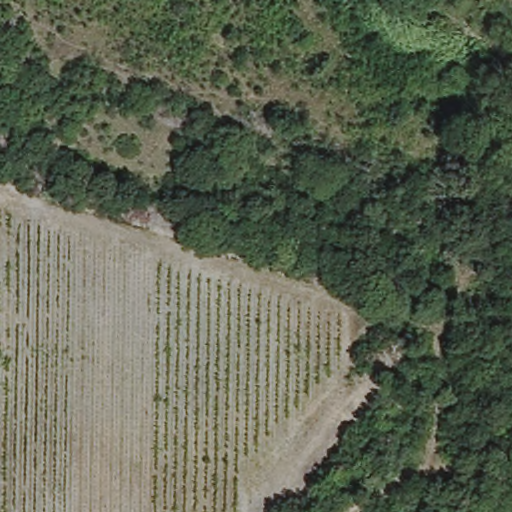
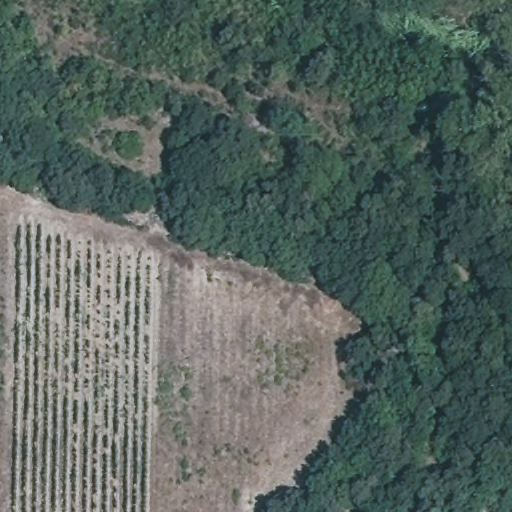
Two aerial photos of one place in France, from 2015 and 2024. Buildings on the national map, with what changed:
unchanged [(447,176),(457,160),(467,170),(454,186),(447,176)]

